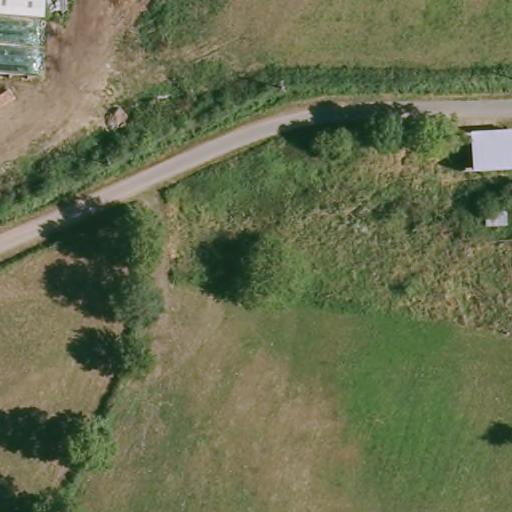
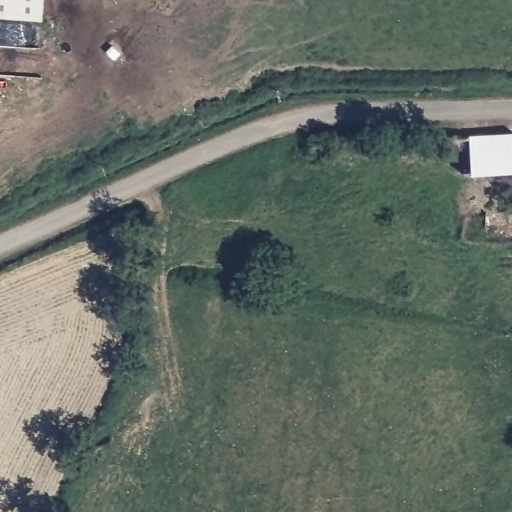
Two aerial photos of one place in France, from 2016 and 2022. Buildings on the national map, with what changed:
unchanged [(37,17),(0,15),(0,0),(37,0),(37,17)]
unchanged [(502,167),(458,168),(457,133),(502,130),(502,167)]

